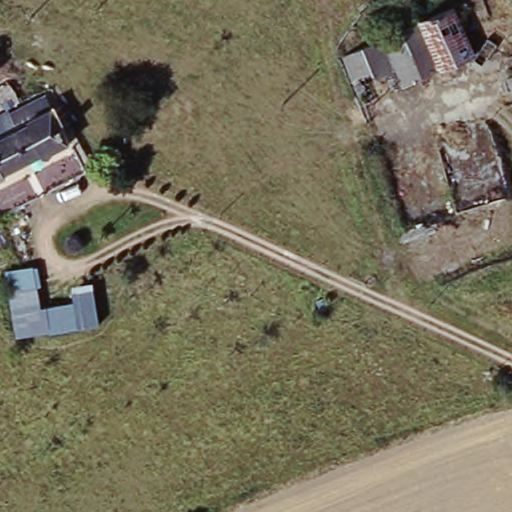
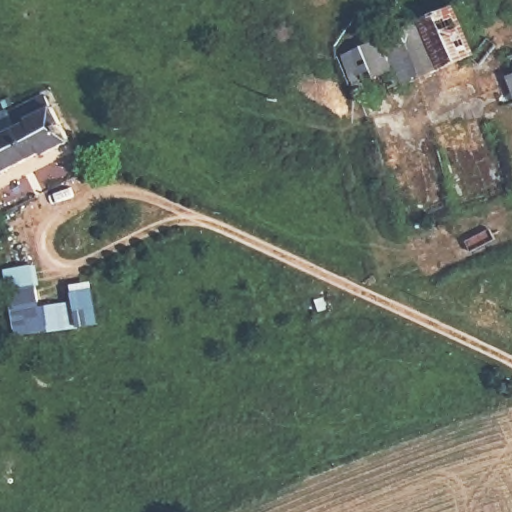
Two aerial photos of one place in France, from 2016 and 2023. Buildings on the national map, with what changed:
unchanged [(425,19),(469,0),(490,49),(368,104),(347,54),(369,46),(425,19)]
unchanged [(512,71),(512,84),(507,73),(512,71)]
unchanged [(50,159),(49,156),(11,176),(12,179),(0,186),(0,127),(51,100),(57,110),(58,110),(76,146),(50,159)]
unchanged [(100,322),(15,335),(5,268),(36,264),(43,304),(74,299),(72,285),(93,281),(100,322)]

